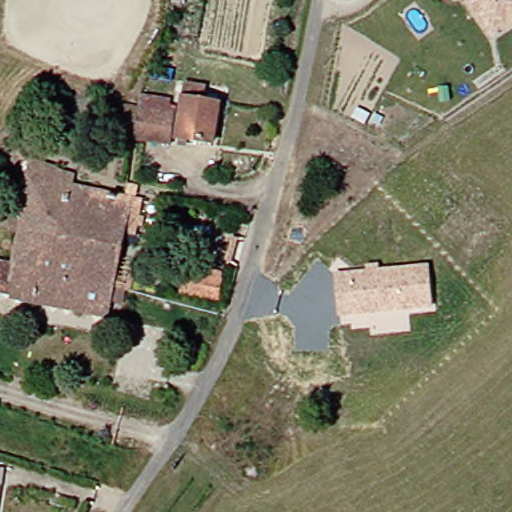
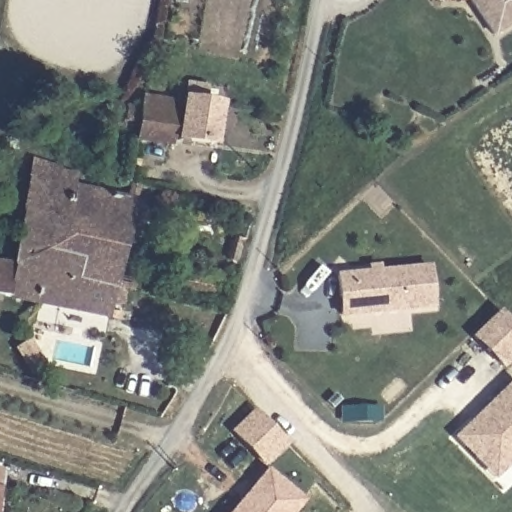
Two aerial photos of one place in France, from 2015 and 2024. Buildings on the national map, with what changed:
unchanged [(492,39),(466,0),(512,0),(512,25),(492,39)]
unchanged [(200,95),(212,97),(206,134),(169,128),(178,73),(202,77),(200,95)]
demolished [(402,113),(396,124),(409,132),(399,149),(359,129),(365,115),(354,110),(362,94),(402,113)]
unchanged [(135,95),(166,101),(160,143),(127,136),(135,95)]
unchanged [(0,294),(0,262),(4,263),(6,263),(12,223),(26,156),(65,175),(63,182),(123,198),(137,200),(129,232),(116,229),(105,279),(119,282),(117,297),(104,296),(100,312),(0,294)]
unchanged [(365,270),(365,264),(379,263),(380,269),(430,265),(434,307),(338,317),(335,274),(365,270)]
new [(500,310),(512,324),(512,360),(501,370),(470,338),(500,310)]
demolished [(15,340),(33,347),(24,371),(7,366),(15,340)]
new [(493,481),(453,439),(512,383),(512,463),(493,481)]
new [(381,423),(339,422),(339,406),(382,406),(381,423)]
new [(306,501),(296,512),(228,512),(264,468),(230,432),(254,409),(288,445),(266,467),(270,470),(306,501)]

